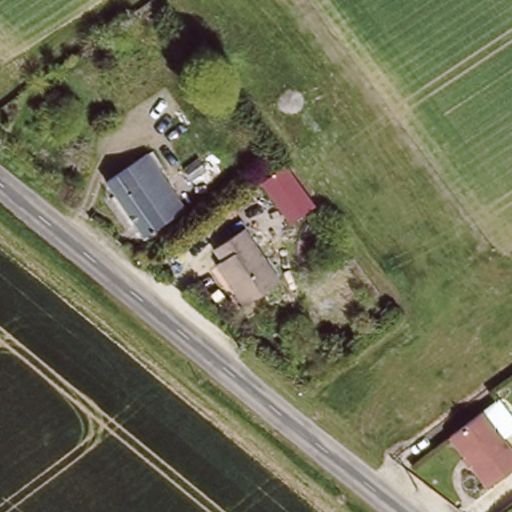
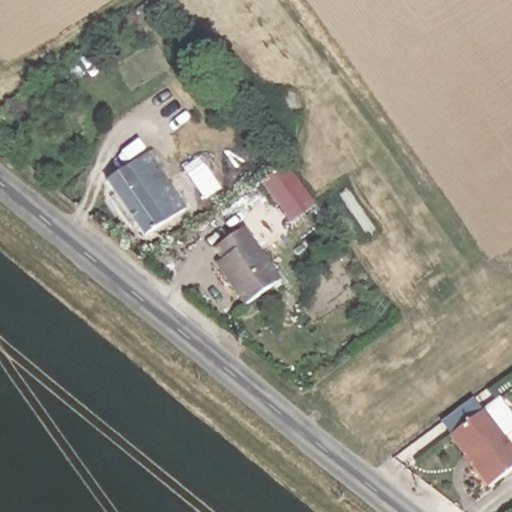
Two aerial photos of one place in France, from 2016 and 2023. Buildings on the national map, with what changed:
unchanged [(148,243),(135,225),(127,232),(106,202),(116,196),(107,184),(152,152),(166,172),(161,175),(187,215),(148,243)]
unchanged [(288,164),(318,208),(291,225),(261,182),(288,164)]
unchanged [(240,311),(209,268),(216,263),(211,255),(248,230),(283,281),(240,311)]
unchanged [(512,455),(512,474),(490,490),(450,435),(480,412),(512,455)]

